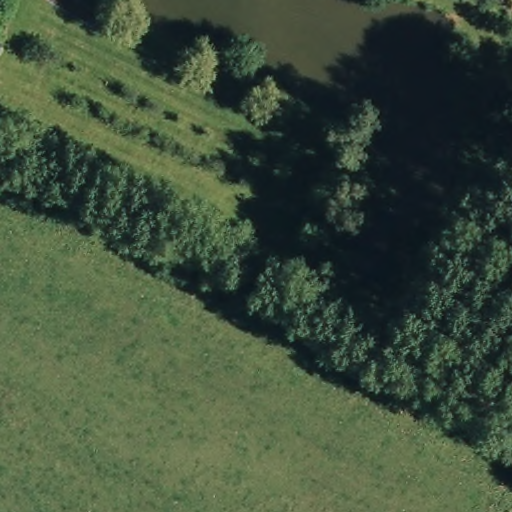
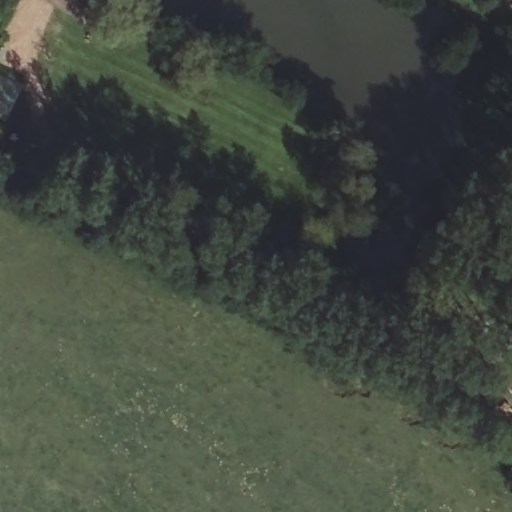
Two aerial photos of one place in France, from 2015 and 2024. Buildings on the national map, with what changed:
[]

